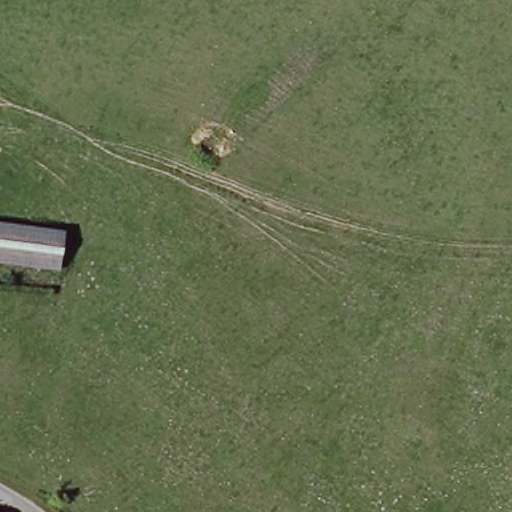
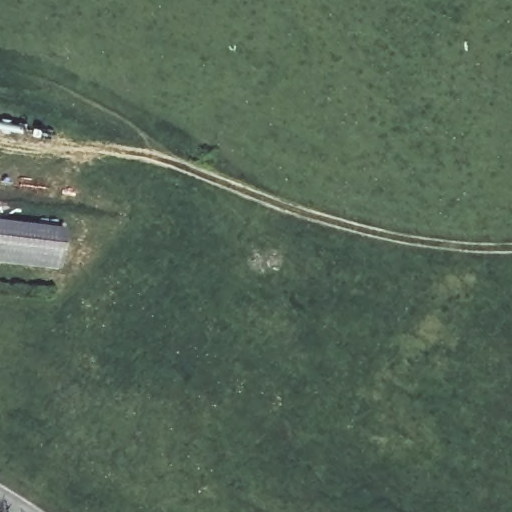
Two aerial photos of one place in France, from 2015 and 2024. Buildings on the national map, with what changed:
unchanged [(67,231),(62,272),(0,264),(0,222),(67,231)]

